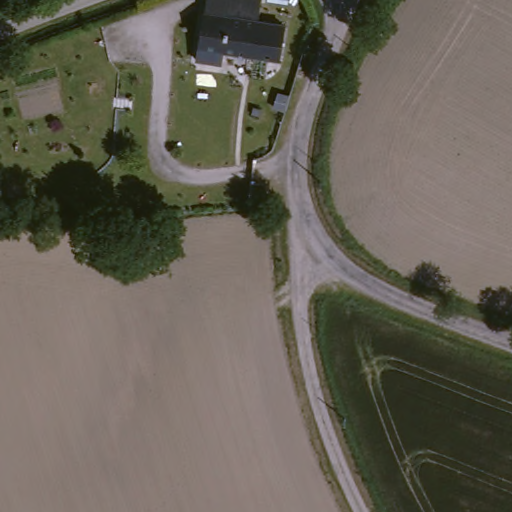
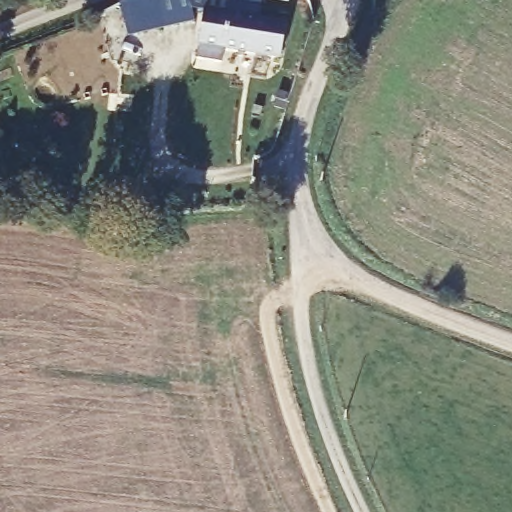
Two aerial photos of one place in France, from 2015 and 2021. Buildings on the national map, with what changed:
new [(192,11),(194,23),(128,39),(118,5),(141,0),(238,0),(235,19),(205,13),(192,11)]
unchanged [(223,52),(221,67),(196,62),(205,13),(235,19),(238,0),(253,0),(268,3),(264,27),(284,31),(278,64),(235,55),(223,52)]
new [(261,1),(253,0),(261,0),(261,1)]

